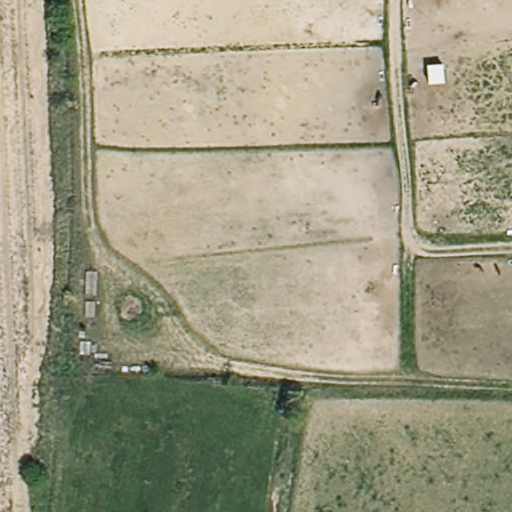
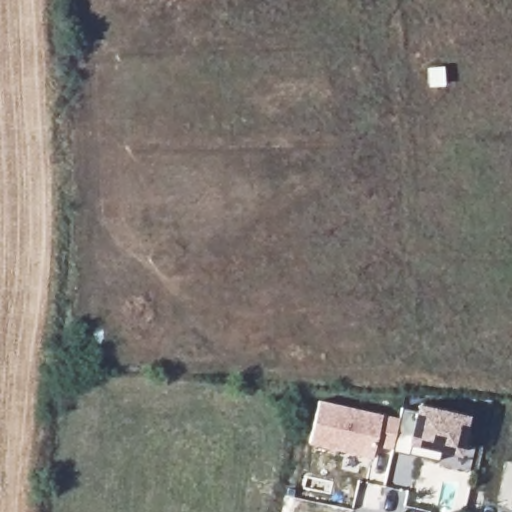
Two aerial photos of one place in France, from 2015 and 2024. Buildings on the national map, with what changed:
new [(382,415),(400,419),(402,409),(416,412),(418,404),(470,415),(460,456),(441,452),(438,461),(410,454),(410,456),(392,452),(392,449),(376,446),(373,459),(309,445),(319,401),(382,415)]

